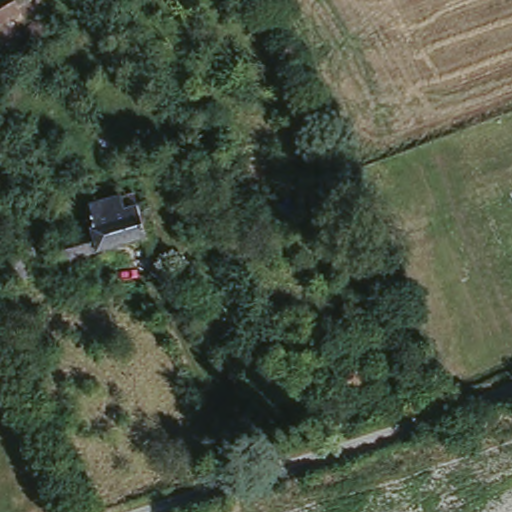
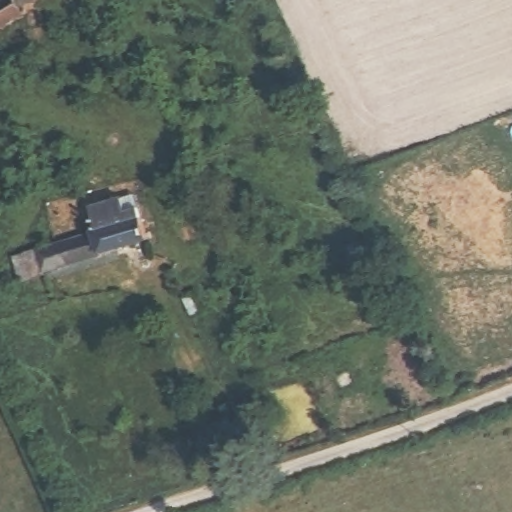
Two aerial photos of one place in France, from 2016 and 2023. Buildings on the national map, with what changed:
unchanged [(27,4),(30,10),(0,27),(0,4),(7,0),(34,0),(27,4)]
unchanged [(14,265),(21,262),(19,250),(32,245),(89,226),(88,224),(92,222),(87,200),(118,191),(122,207),(135,204),(143,238),(39,269),(16,276),(14,265)]
unchanged [(345,244),(359,277),(340,287),(326,253),(345,244)]

